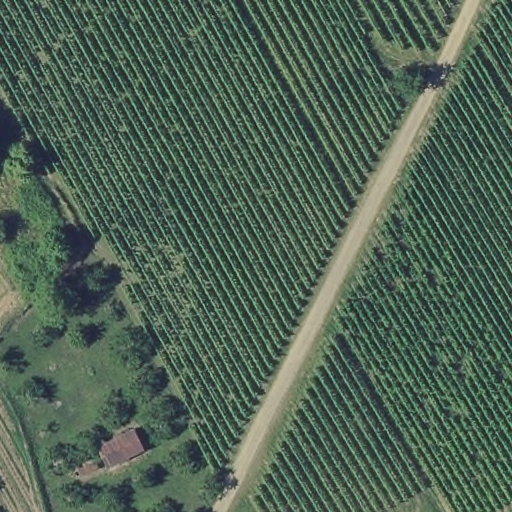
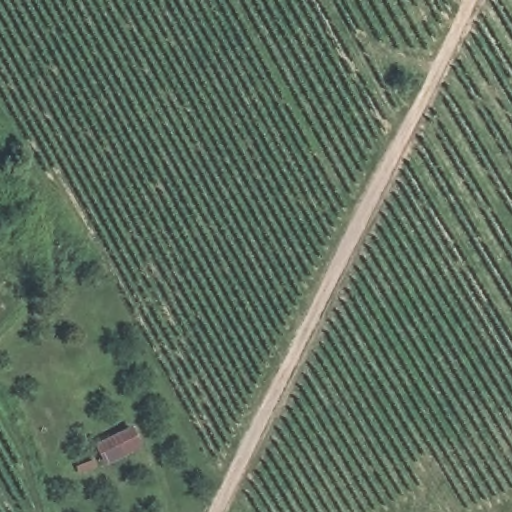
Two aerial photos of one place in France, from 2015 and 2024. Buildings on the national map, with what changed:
unchanged [(143,449),(105,466),(94,440),(133,425),(143,449)]

